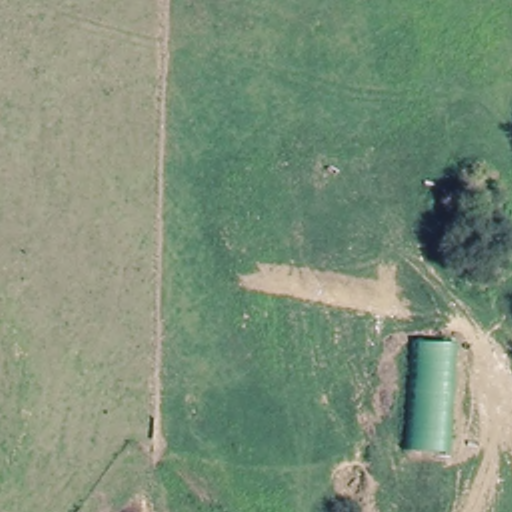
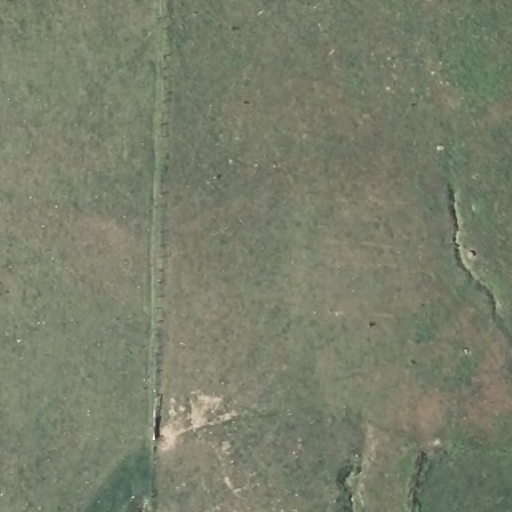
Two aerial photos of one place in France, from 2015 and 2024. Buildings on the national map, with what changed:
demolished [(454,343),(444,453),(405,447),(412,341),(454,343)]

